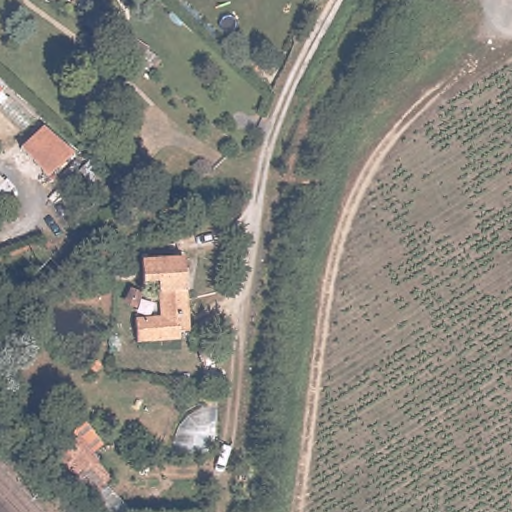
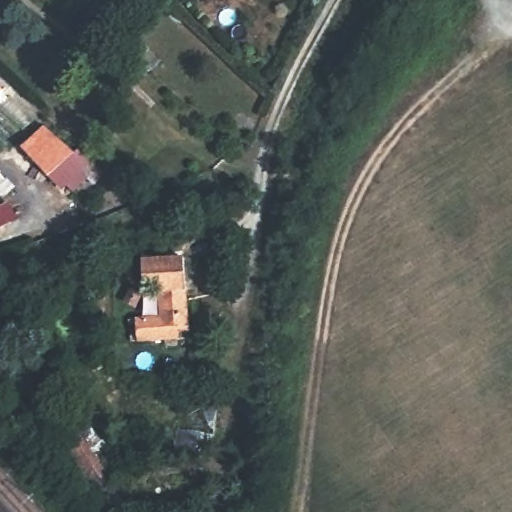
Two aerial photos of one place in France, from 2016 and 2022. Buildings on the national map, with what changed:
unchanged [(1,89),(0,90),(0,88),(1,89)]
unchanged [(74,147),(45,171),(18,143),(42,122),(74,147)]
unchanged [(136,320),(161,318),(159,283),(144,284),(143,262),(184,259),(189,317),(179,318),(180,340),(138,343),(136,320)]

